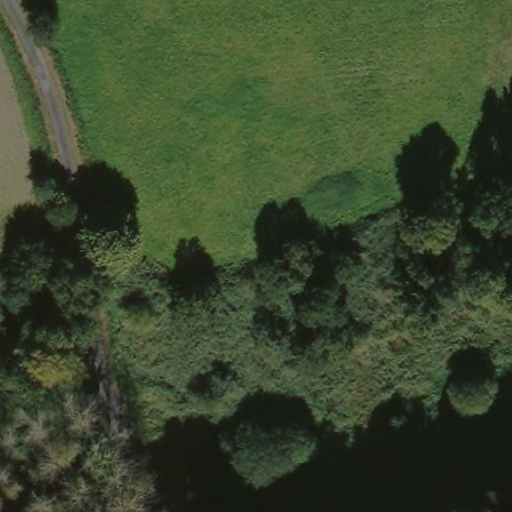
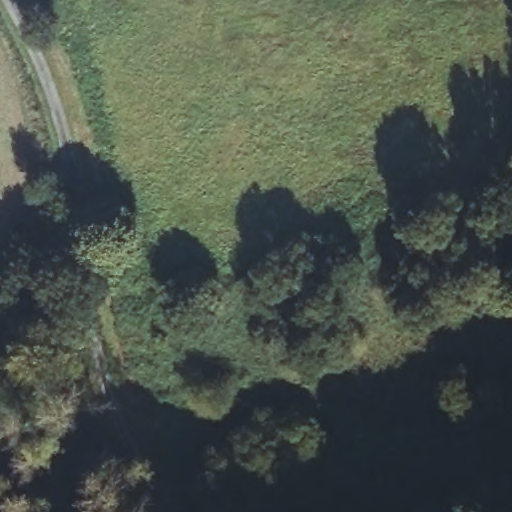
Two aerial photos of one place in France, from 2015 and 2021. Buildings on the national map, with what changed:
[]

